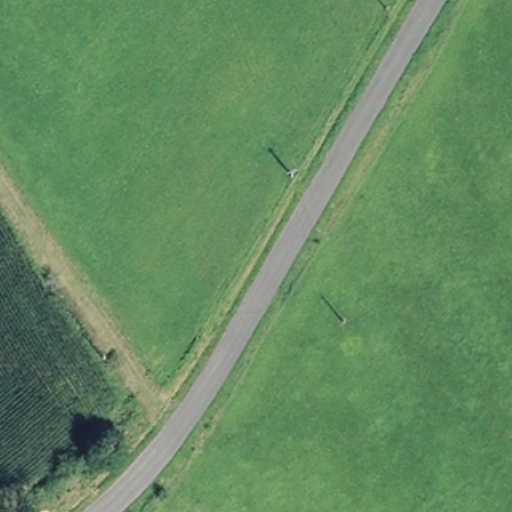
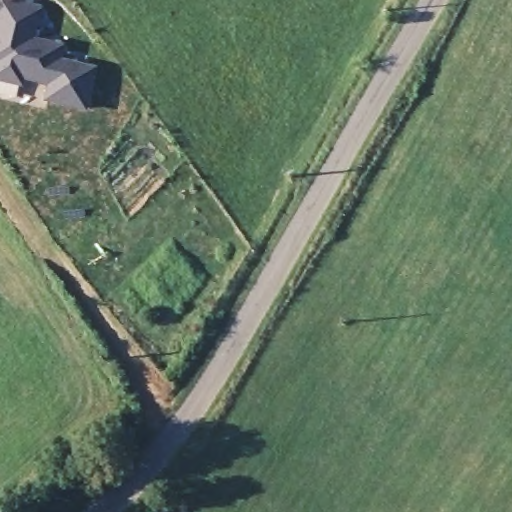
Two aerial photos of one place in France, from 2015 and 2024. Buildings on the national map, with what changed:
new [(4,0),(39,8),(33,39),(63,46),(59,61),(95,69),(86,108),(49,99),(53,83),(24,76),(23,84),(0,79),(0,8),(2,0),(4,0)]

